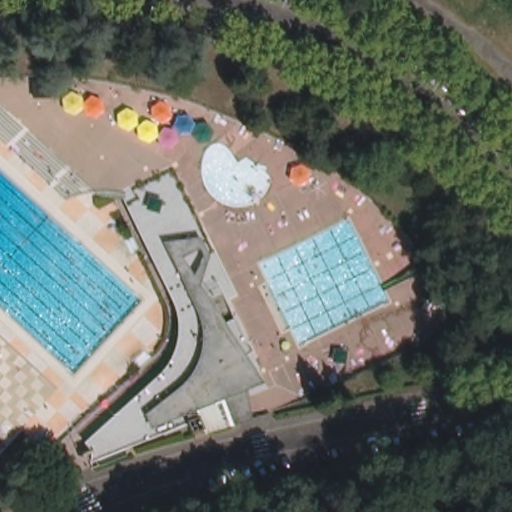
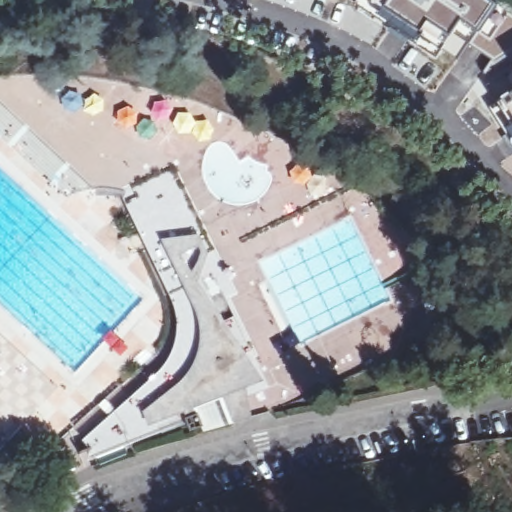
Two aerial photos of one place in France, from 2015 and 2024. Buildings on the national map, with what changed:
new [(436,57),(396,30),(355,0),(492,0),(497,3),(508,12),(512,16),(512,49),(506,54),(495,62),(468,42),(456,58),(442,49),(436,57)]
new [(498,118),(500,117),(498,113),(501,111),(494,100),(512,89),(512,140),(498,118)]
unchanged [(189,436),(184,415),(85,464),(75,445),(158,373),(170,355),(176,342),(177,331),(176,311),(175,299),(122,193),(168,173),(198,232),(209,255),(202,280),(264,380),(247,387),(250,419),(189,436)]
unchanged [(6,446),(0,441),(0,327),(63,385),(28,423),(6,446)]

